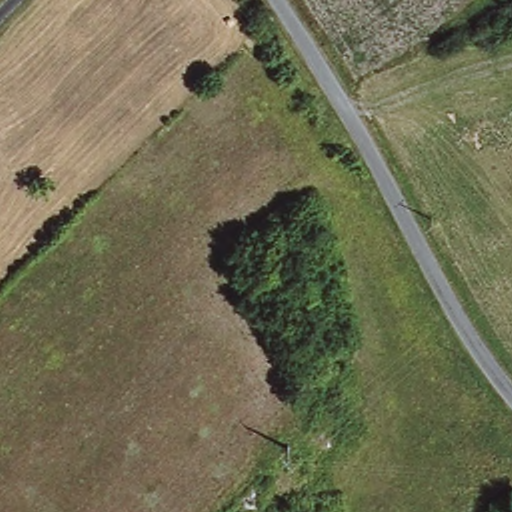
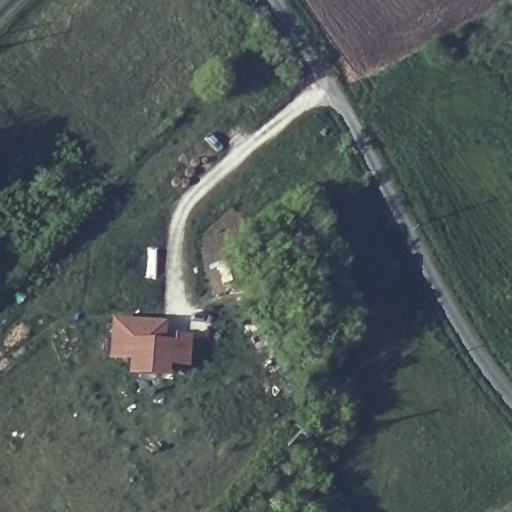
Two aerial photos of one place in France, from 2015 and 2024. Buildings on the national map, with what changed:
new [(167,322),(166,337),(190,338),(190,370),(170,368),(169,377),(127,375),(127,362),(109,361),(110,321),(167,322)]

